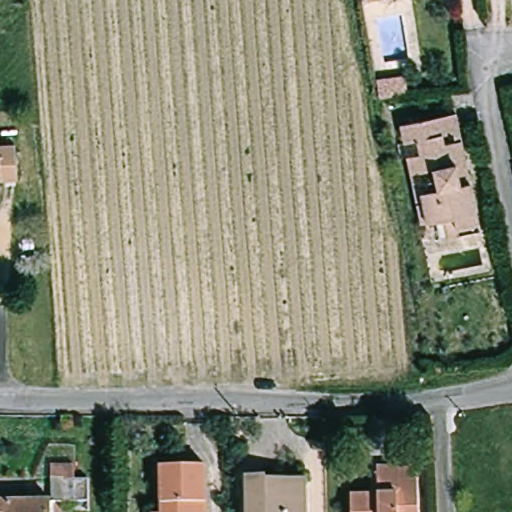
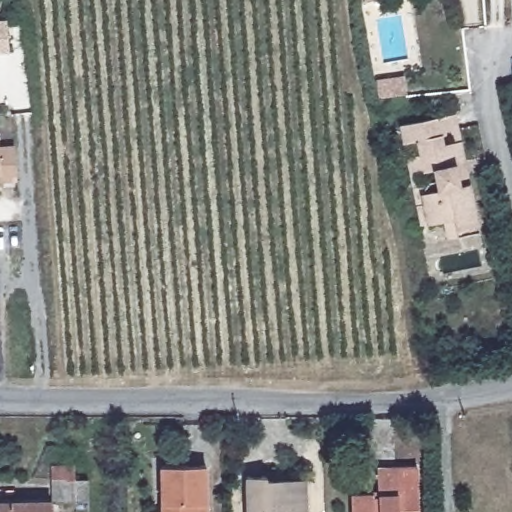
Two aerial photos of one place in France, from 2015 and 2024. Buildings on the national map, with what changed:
new [(8,52),(0,53),(0,20),(5,20),(8,52)]
unchanged [(407,94),(378,98),(375,80),(405,76),(407,94)]
unchanged [(400,157),(405,156),(413,154),(410,141),(398,143),(394,125),(450,113),(474,232),(453,236),(449,217),(420,224),(415,225),(400,157)]
unchanged [(3,146),(20,145),(22,181),(4,182),(3,175),(0,176),(0,132),(2,131),(3,146)]
unchanged [(50,466),(75,465),(75,479),(88,479),(89,502),(51,502),(51,501),(50,466)]
unchanged [(205,465),(206,512),(161,512),(160,466),(205,465)]
unchanged [(351,512),(351,494),(378,493),(377,467),(417,466),(418,512),(351,512)]
unchanged [(265,476),(265,480),(305,479),(306,512),(247,512),(246,477),(265,476)]
unchanged [(51,512),(0,512),(0,502),(51,501),(51,502),(51,512)]

